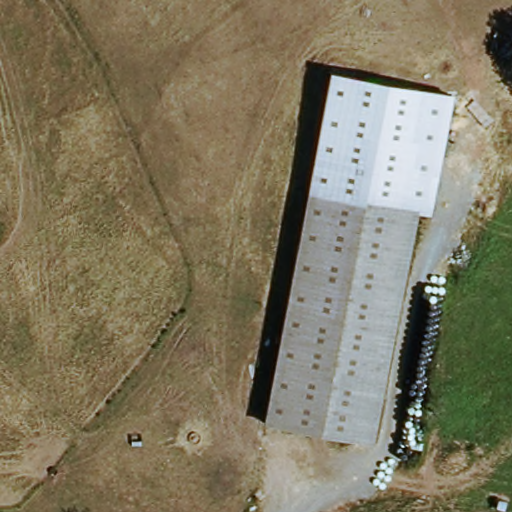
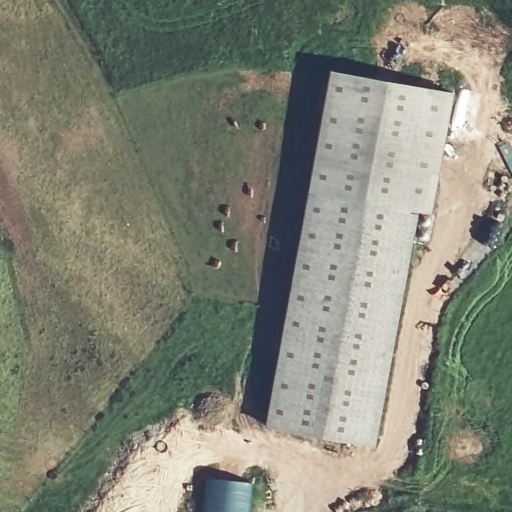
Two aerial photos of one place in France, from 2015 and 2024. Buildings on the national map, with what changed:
unchanged [(331,72),(453,92),(430,212),(417,210),(310,192),(331,72)]
unchanged [(417,210),(376,447),(265,429),(310,192),(417,210)]
new [(203,512),(207,477),(254,483),(250,512),(203,512)]

